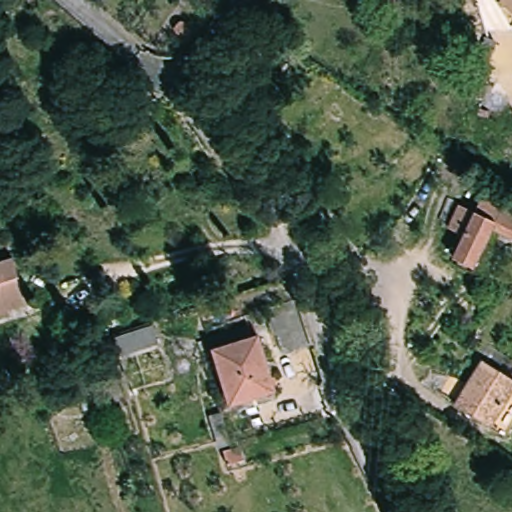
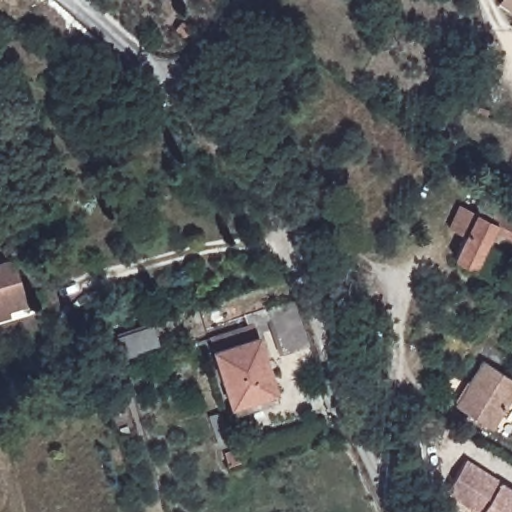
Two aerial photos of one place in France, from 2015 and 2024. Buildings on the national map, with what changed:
unchanged [(500,10),(507,0),(508,0),(512,0),(512,19),(500,10)]
unchanged [(180,21),(184,21),(186,22),(187,25),(189,27),(190,30),(184,36),(182,36),(179,36),(177,35),(176,32),(174,30),(174,27),(180,21)]
unchanged [(475,270),(457,261),(467,239),(453,232),(465,207),(479,214),(485,201),(512,214),(512,236),(496,229),(475,270)]
unchanged [(0,259),(14,255),(26,302),(30,316),(0,324),(0,259)]
unchanged [(298,301),(311,350),(283,358),(268,310),(298,301)]
unchanged [(278,387),(236,400),(218,343),(260,330),(278,387)]
unchanged [(155,335),(160,351),(115,365),(109,349),(155,335)]
unchanged [(500,427),(485,417),(447,394),(474,351),(512,375),(512,409),(500,427)]
unchanged [(211,457),(200,425),(213,421),(224,453),(211,457)]
unchanged [(230,455),(235,470),(220,475),(215,460),(230,455)]
new [(446,493),(467,459),(500,480),(512,488),(512,512),(475,512),(446,493)]

